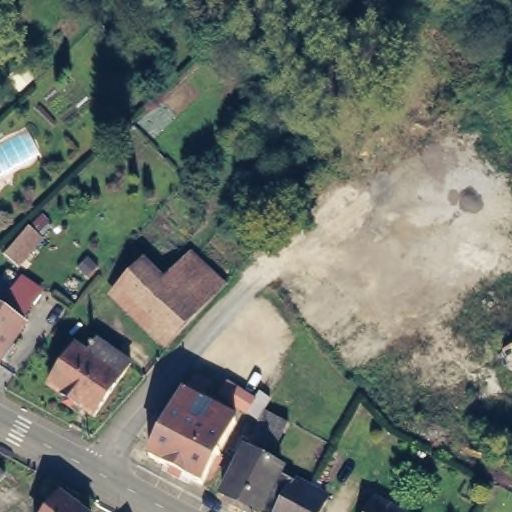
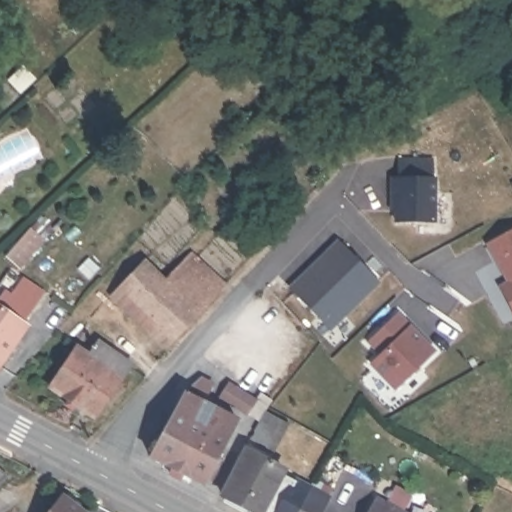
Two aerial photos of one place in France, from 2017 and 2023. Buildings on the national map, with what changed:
new [(394,182),(400,182),(399,164),(434,164),(434,182),(436,182),(436,227),(398,227),(398,200),(394,200),(394,182)]
new [(505,282),(484,244),(512,231),(512,313),(498,285),(505,282)]
new [(288,288),(339,240),(380,283),(329,330),(288,288)]
unchanged [(218,285),(203,303),(191,318),(159,286),(188,256),(218,285)]
unchanged [(191,318),(169,343),(114,290),(139,266),(159,286),(191,318)]
unchanged [(14,276),(6,289),(29,307),(22,317),(26,320),(0,357),(0,279),(6,270),(14,276)]
new [(369,364),(380,356),(367,342),(399,313),(437,352),(393,391),(369,364)]
unchanged [(123,374),(98,412),(53,382),(78,344),(123,374)]
unchanged [(181,389),(195,379),(205,384),(198,399),(234,419),(200,482),(146,452),(181,389)]
unchanged [(228,384),(251,399),(243,413),(220,397),(228,384)]
unchanged [(290,420),(274,448),(256,437),(271,409),(290,420)]
unchanged [(250,448),(283,467),(281,471),(259,511),(225,492),(250,448)]
unchanged [(320,512),(262,512),(259,511),(281,471),(301,483),(311,489),(306,496),(324,506),(320,512)]
unchanged [(4,482),(0,486),(0,478),(4,482)]
unchanged [(407,512),(365,512),(373,496),(407,512)]
unchanged [(61,498),(79,512),(50,512),(61,498)]

